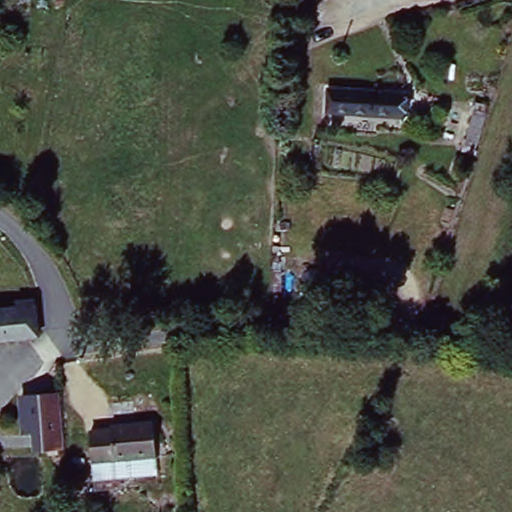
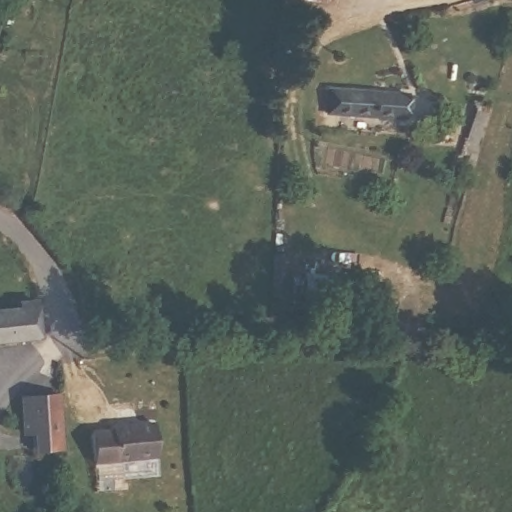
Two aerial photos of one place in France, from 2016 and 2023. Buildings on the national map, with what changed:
unchanged [(402,94),(399,119),(328,113),(331,89),(402,94)]
unchanged [(484,109),(471,151),(462,149),(475,105),(484,109)]
unchanged [(360,279),(360,281),(373,282),(371,310),(301,304),(304,273),(360,279)]
unchanged [(38,341),(0,345),(0,308),(34,305),(36,311),(38,341)]
unchanged [(62,394),(67,447),(42,449),(40,430),(29,432),(27,395),(62,394)]
unchanged [(91,431),(110,430),(111,426),(152,423),(156,454),(93,460),(91,431)]
unchanged [(156,454),(158,475),(95,480),(93,460),(156,454)]

